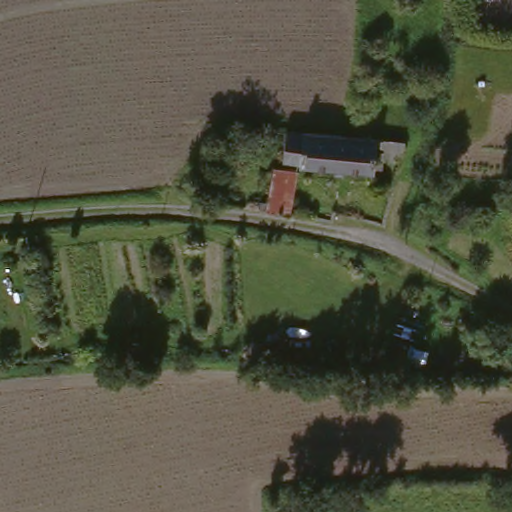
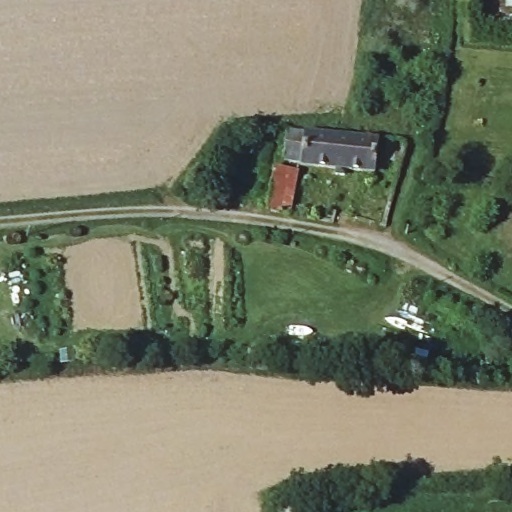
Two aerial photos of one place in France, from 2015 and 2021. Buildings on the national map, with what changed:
unchanged [(308,132),(344,136),(362,137),(362,122),(388,124),(388,140),(409,142),(404,160),(389,159),(388,169),(380,168),(379,171),(304,164),(305,162),(288,161),(291,131),(308,132)]
unchanged [(279,166),(303,170),(294,216),(271,211),(279,166)]

